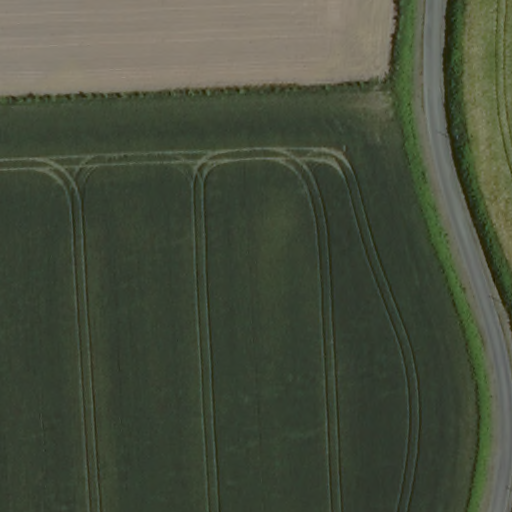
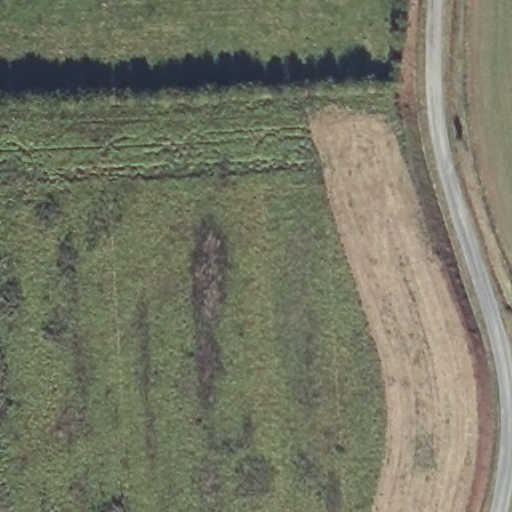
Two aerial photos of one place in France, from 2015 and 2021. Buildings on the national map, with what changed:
[]

